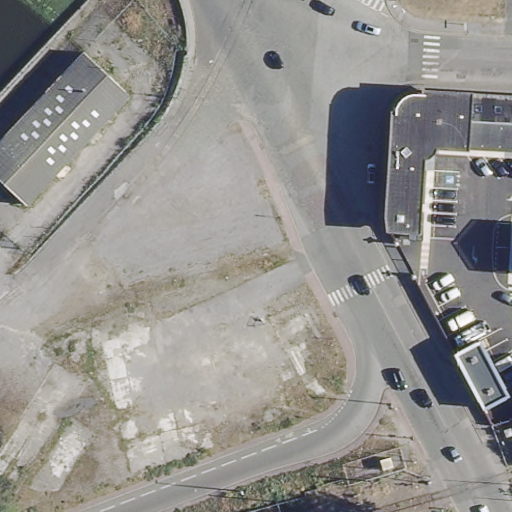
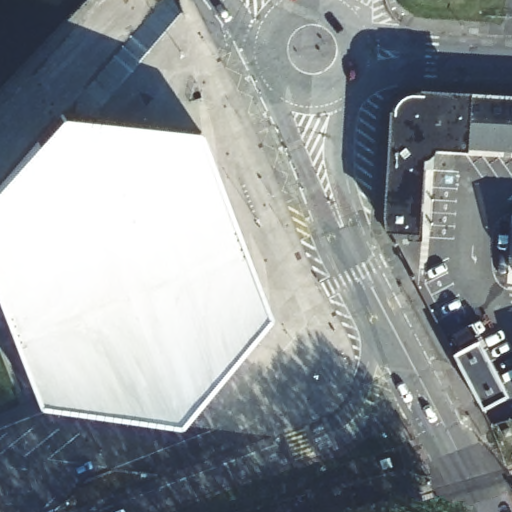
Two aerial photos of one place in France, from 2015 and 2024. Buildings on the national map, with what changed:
demolished [(0,184),(0,141),(81,54),(125,95),(23,205),(0,184)]
unchanged [(512,91),(512,143),(440,140),(422,151),(415,232),(385,229),(393,103),(410,85),(512,91)]
new [(67,104),(135,114),(200,125),(272,315),(226,372),(181,423),(124,414),(70,409),(39,405),(0,302),(0,182),(67,104)]
unchanged [(480,409),(450,353),(475,340),(505,395),(487,406),(480,409)]
unchanged [(482,434),(492,431),(496,441),(485,444),(482,434)]
demolished [(372,479),(360,482),(353,457),(363,453),(394,444),(402,469),(372,479)]
new [(388,459),(390,467),(382,470),(379,461),(388,459)]
demolished [(310,497),(293,502),(286,477),(303,471),(310,497)]

